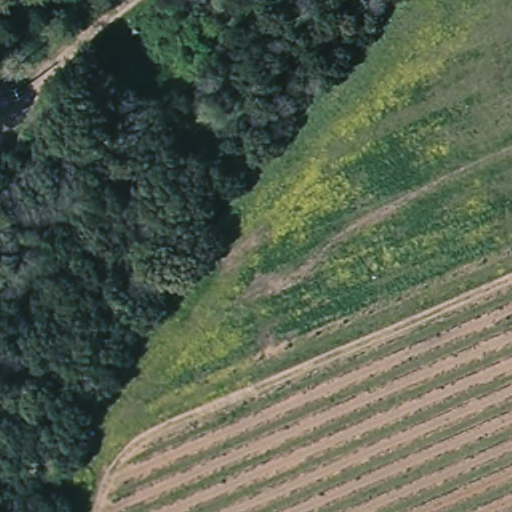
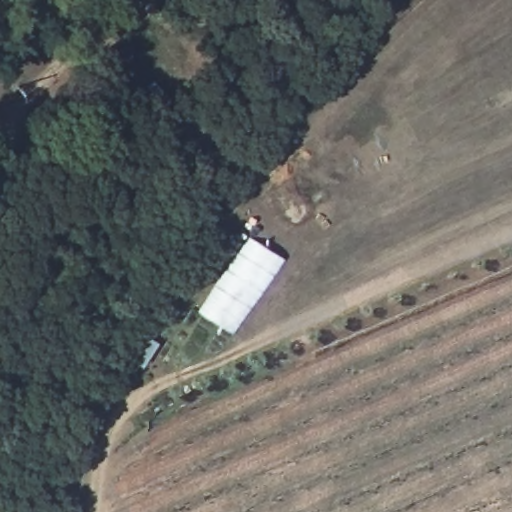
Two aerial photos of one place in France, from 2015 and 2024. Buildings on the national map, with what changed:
new [(249,236),(284,260),(233,333),(199,310),(249,236)]

